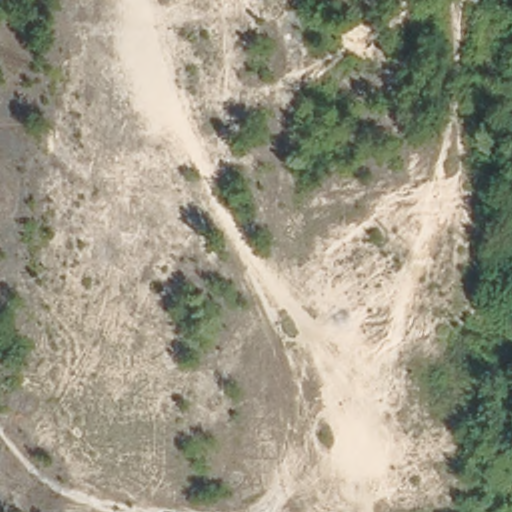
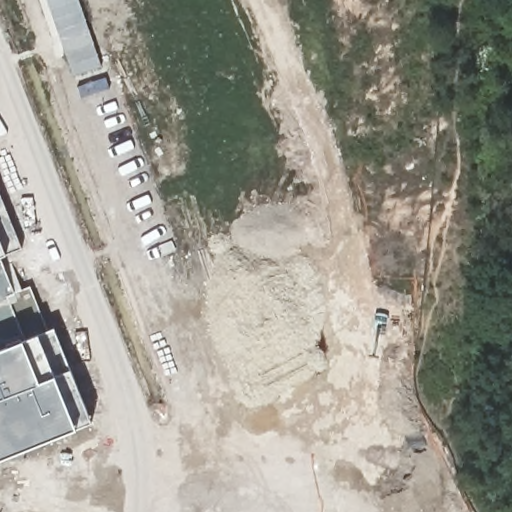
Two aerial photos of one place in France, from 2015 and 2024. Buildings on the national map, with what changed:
new [(0,459),(0,195),(22,249),(6,254),(0,256),(14,292),(29,286),(46,331),(54,328),(70,370),(91,421),(76,428),(0,459)]

